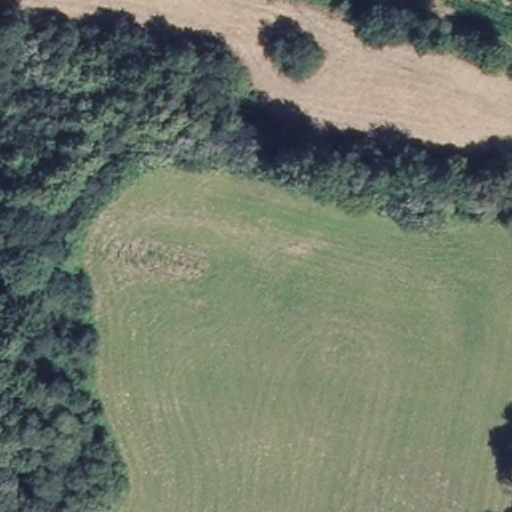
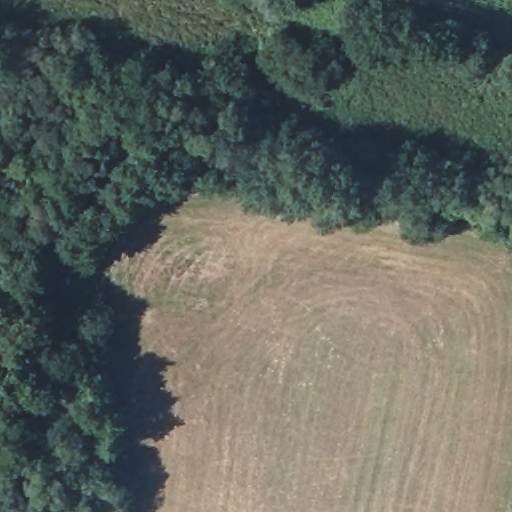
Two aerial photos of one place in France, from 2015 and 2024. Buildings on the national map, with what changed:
[]

